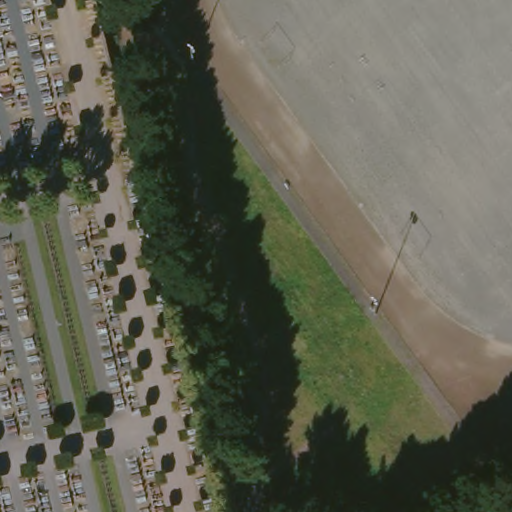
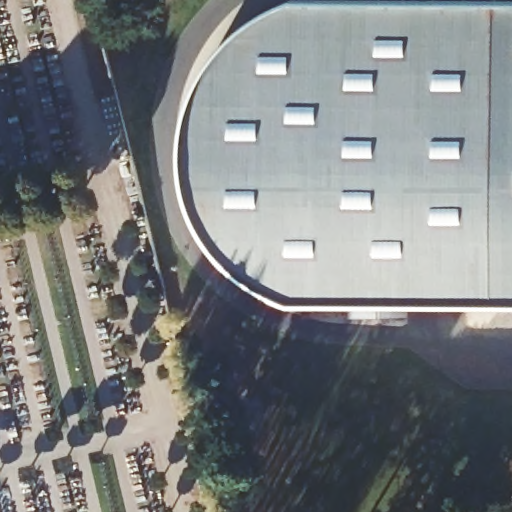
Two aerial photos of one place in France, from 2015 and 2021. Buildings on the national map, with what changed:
new [(253,285),(228,263),(213,245),(202,225),(193,203),(188,180),(185,156),(186,135),(190,118),(196,95),(206,74),(221,53),(235,38),(251,25),(268,13),(293,3),(409,3),(409,0),(512,0),(512,303),(293,304),(276,297),(253,285)]

